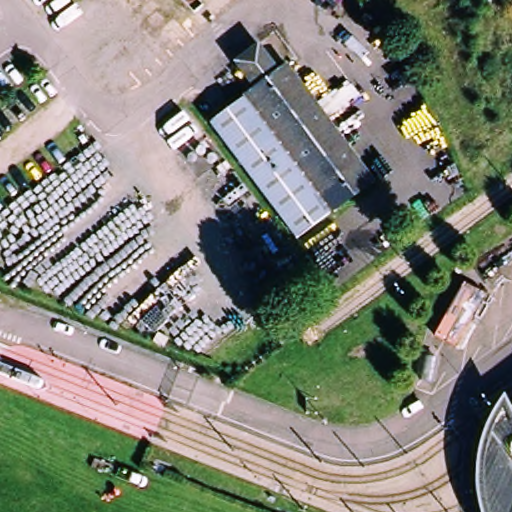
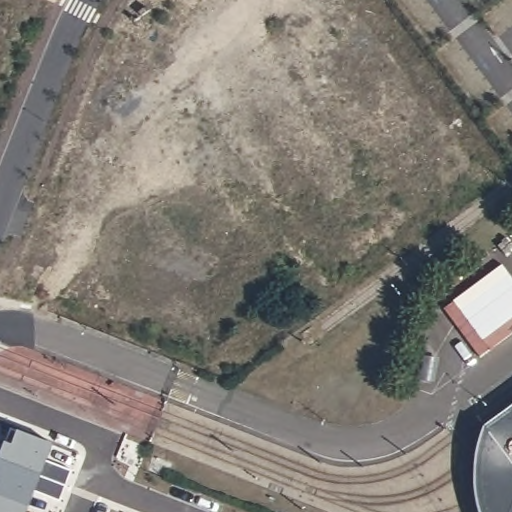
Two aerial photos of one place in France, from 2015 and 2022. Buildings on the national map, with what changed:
demolished [(327,216),(292,241),(285,230),(209,125),(242,101),(255,92),(235,65),(258,50),(277,75),(282,72),(357,176),(367,188),(327,216)]
unchanged [(512,404),(512,471),(480,427),(512,404)]
new [(10,426),(52,442),(46,458),(72,468),(60,500),(34,490),(25,512),(0,512),(0,452),(10,426)]
unchanged [(481,512),(480,512),(478,506),(476,497),(474,487),(472,474),(472,462),(473,453),(476,442),(477,435),(479,430),(480,427),(512,471),(512,488),(483,510),(481,512)]
unchanged [(483,510),(512,488),(512,512),(481,512),(483,510)]

